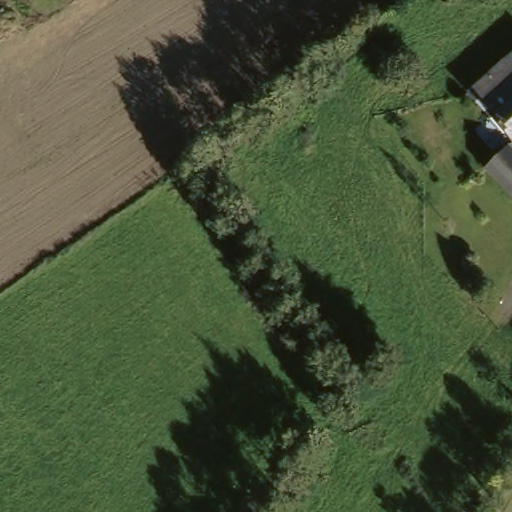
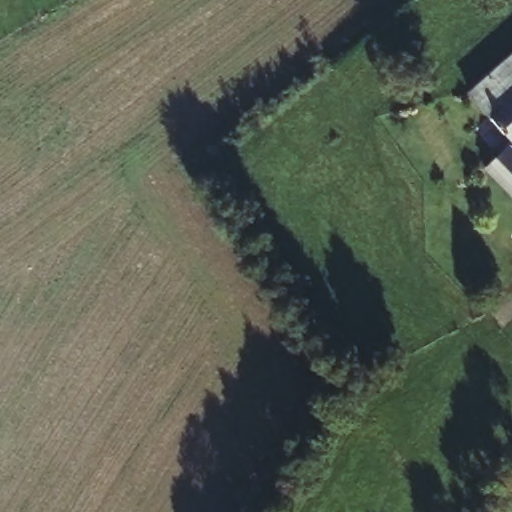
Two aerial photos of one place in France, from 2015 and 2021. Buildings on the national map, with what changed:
unchanged [(512,54),(512,131),(474,86),(512,54)]
unchanged [(512,143),(512,182),(493,161),(512,143)]

